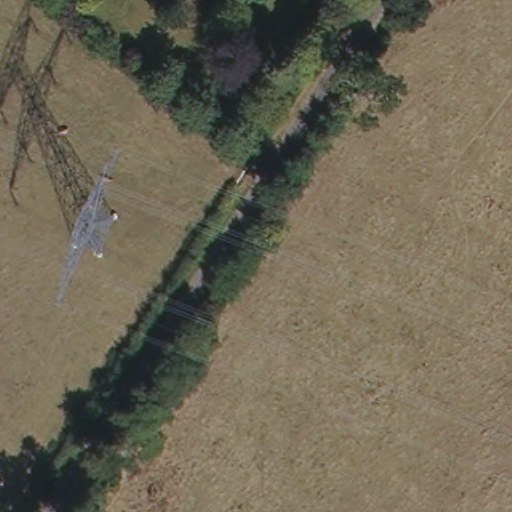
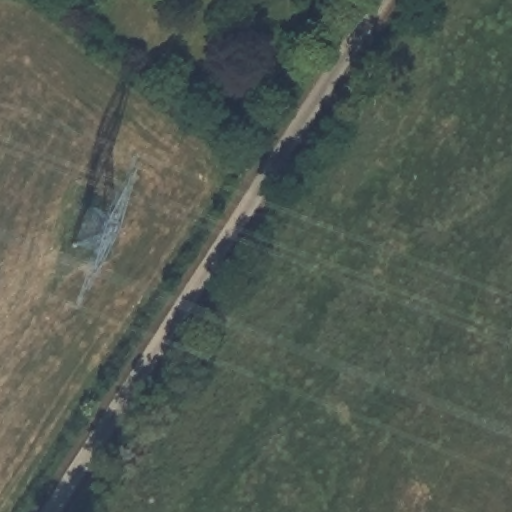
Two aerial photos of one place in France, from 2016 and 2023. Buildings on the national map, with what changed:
[]

